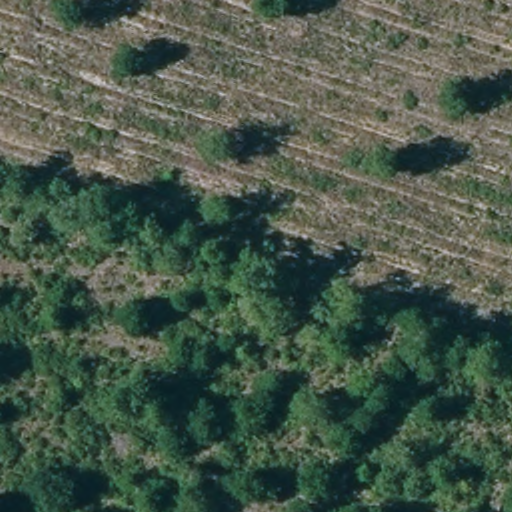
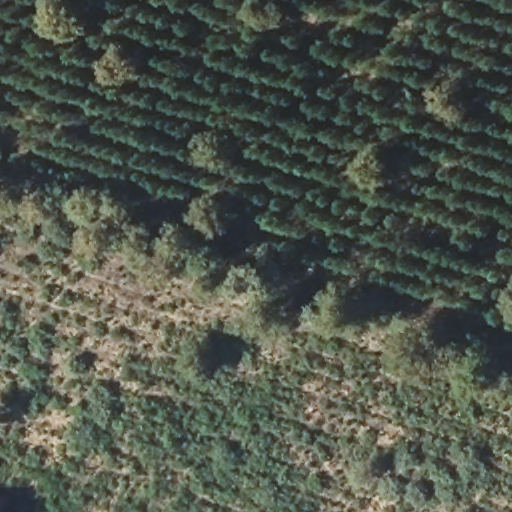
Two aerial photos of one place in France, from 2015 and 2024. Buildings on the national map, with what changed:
[]

